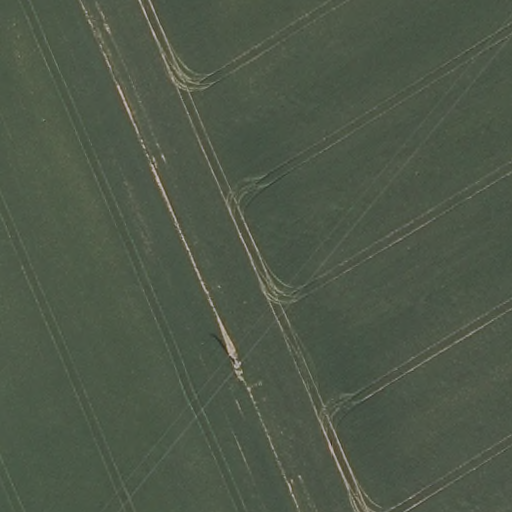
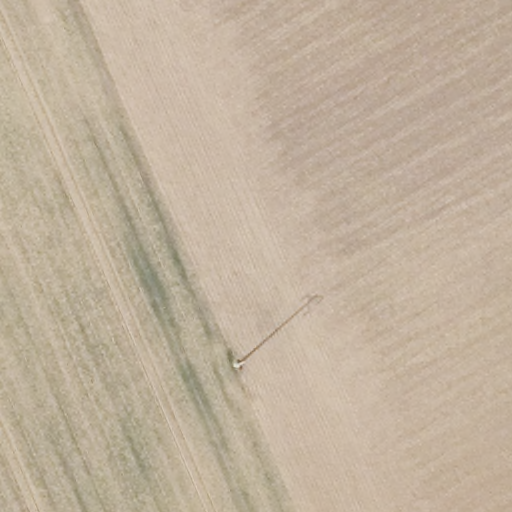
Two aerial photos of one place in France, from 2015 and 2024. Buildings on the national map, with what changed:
[]

